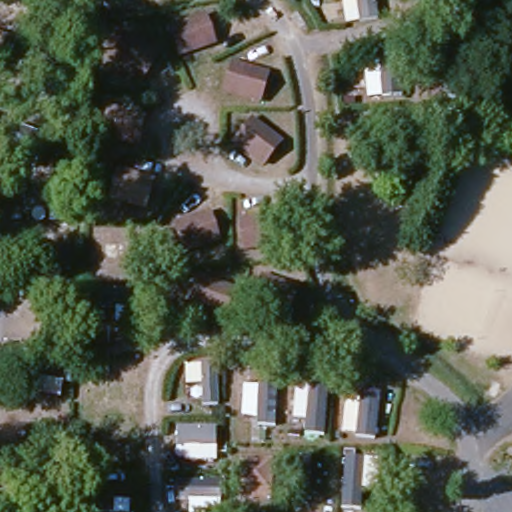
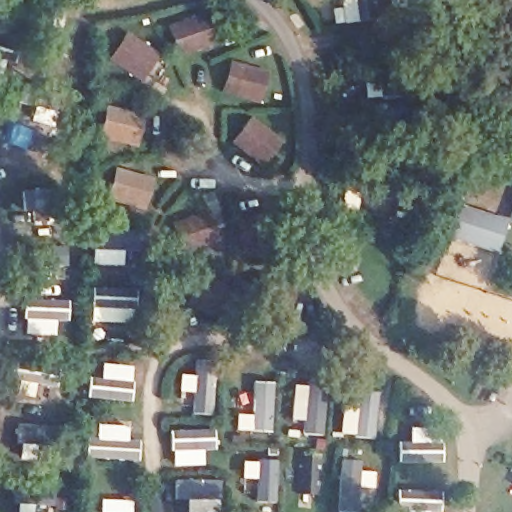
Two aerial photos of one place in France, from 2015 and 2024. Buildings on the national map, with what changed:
unchanged [(178,62),(168,31),(204,20),(216,49),(178,62)]
unchanged [(104,65),(121,36),(159,54),(139,87),(104,65)]
unchanged [(220,99),(226,67),(268,74),(260,107),(220,99)]
unchanged [(98,143),(102,116),(141,119),(136,152),(98,143)]
unchanged [(230,149),(247,122),(282,144),(262,172),(230,149)]
unchanged [(101,202),(110,171),(151,181),(142,214),(101,202)]
new [(448,237),(460,204),(508,221),(497,256),(448,237)]
new [(508,221),(512,210),(512,222),(508,221)]
unchanged [(246,256),(236,224),(272,213),(282,245),(246,256)]
unchanged [(181,259),(170,229),(209,216),(220,245),(181,259)]
unchanged [(184,310),(194,280),(235,293),(221,322),(184,310)]
unchanged [(248,307),(257,280),(297,291),(286,320),(248,307)]

